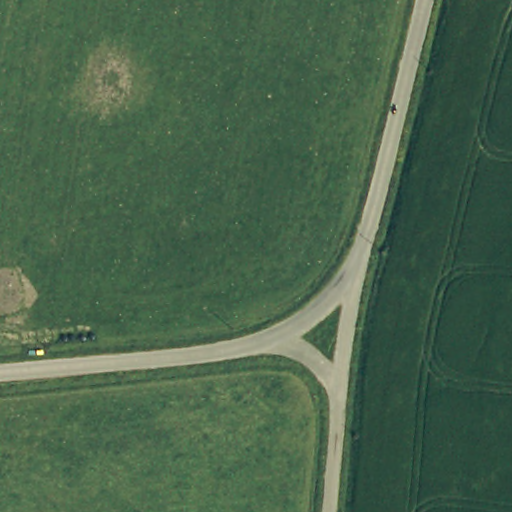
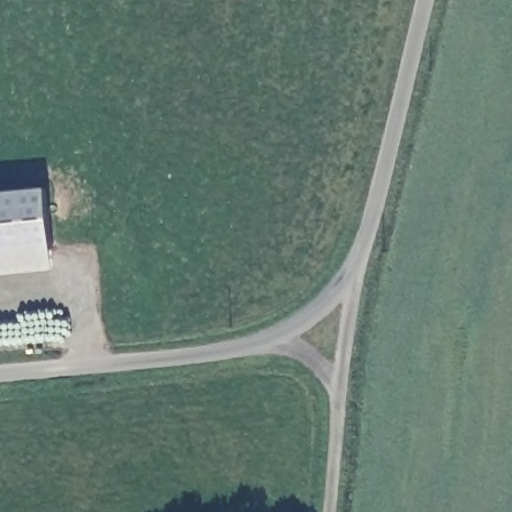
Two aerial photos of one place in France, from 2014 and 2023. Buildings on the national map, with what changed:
new [(45,186),(55,268),(0,275),(0,191),(45,186)]

